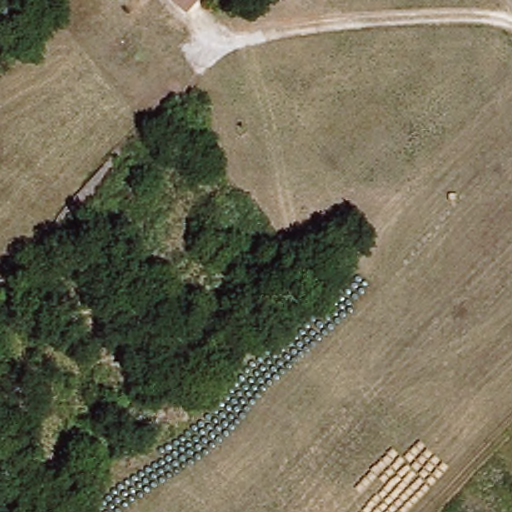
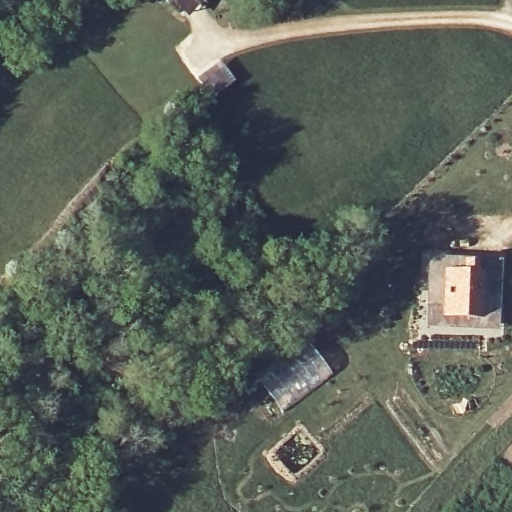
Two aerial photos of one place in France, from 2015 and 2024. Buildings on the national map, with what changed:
unchanged [(171,0),(207,0),(200,7),(191,18),(171,0)]
new [(428,256),(500,260),(498,331),(425,326),(428,256)]

